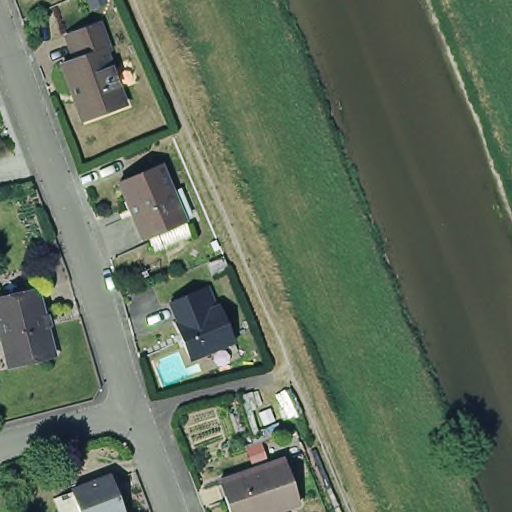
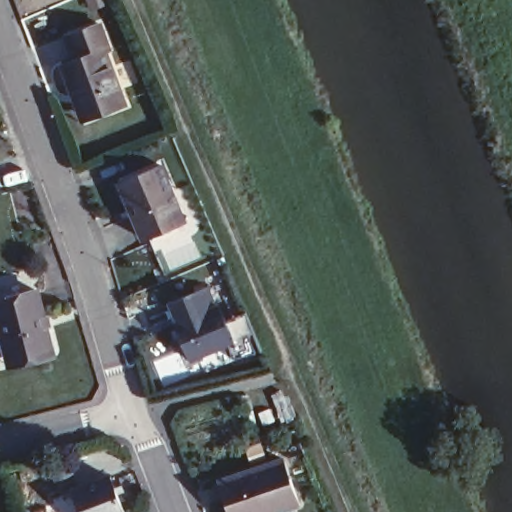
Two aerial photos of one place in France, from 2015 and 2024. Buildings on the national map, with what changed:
unchanged [(50,67),(69,55),(59,25),(88,12),(121,99),(78,119),(50,67)]
unchanged [(151,244),(144,229),(140,231),(131,207),(134,206),(129,192),(125,194),(118,175),(157,158),(181,214),(187,229),(151,244)]
unchanged [(4,360),(3,352),(0,343),(0,290),(30,282),(46,341),(48,348),(4,360)]
unchanged [(206,284),(213,302),(216,300),(234,341),(189,358),(173,322),(176,322),(169,301),(206,284)]
unchanged [(268,407),(273,418),(262,422),(258,411),(268,407)]
unchanged [(266,512),(223,512),(212,479),(276,457),(291,503),(266,512)]
unchanged [(110,475),(124,512),(77,512),(68,491),(110,475)]

